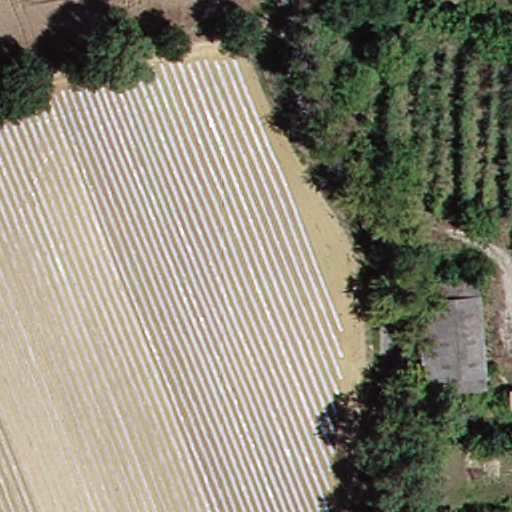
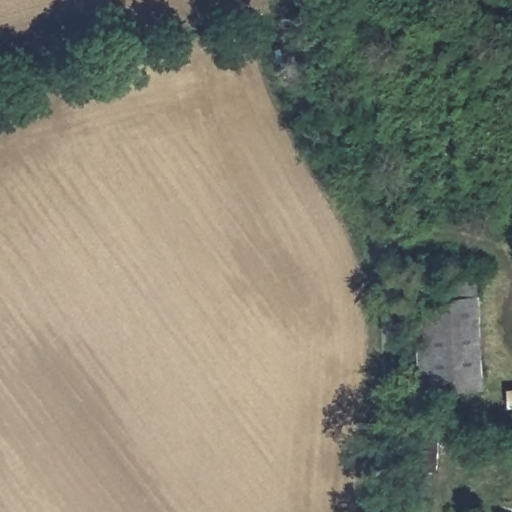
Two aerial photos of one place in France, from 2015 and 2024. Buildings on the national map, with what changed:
unchanged [(480,385),(438,385),(437,395),(421,394),(421,276),(480,275),(480,385)]
unchanged [(439,437),(435,466),(417,464),(421,434),(439,437)]

